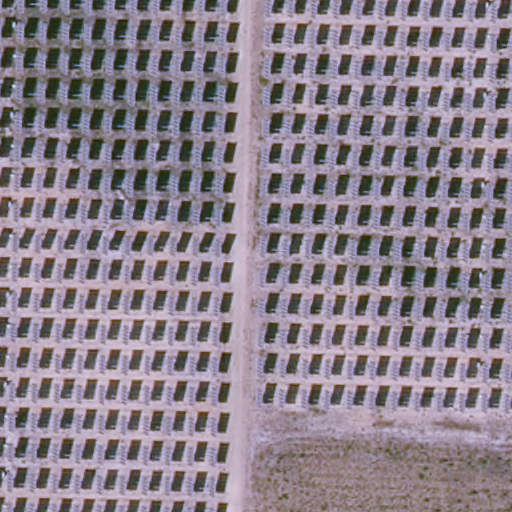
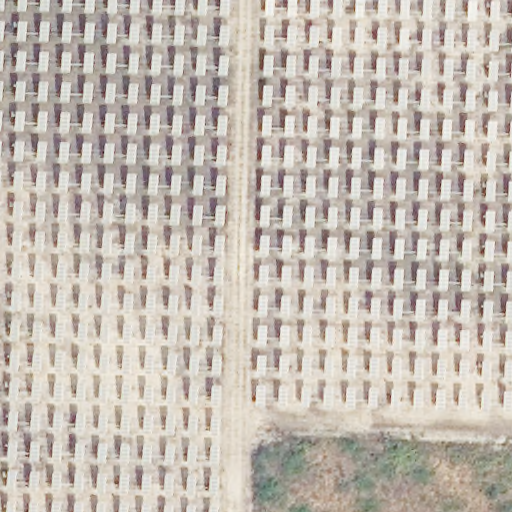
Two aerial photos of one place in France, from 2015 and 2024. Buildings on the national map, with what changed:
[]

